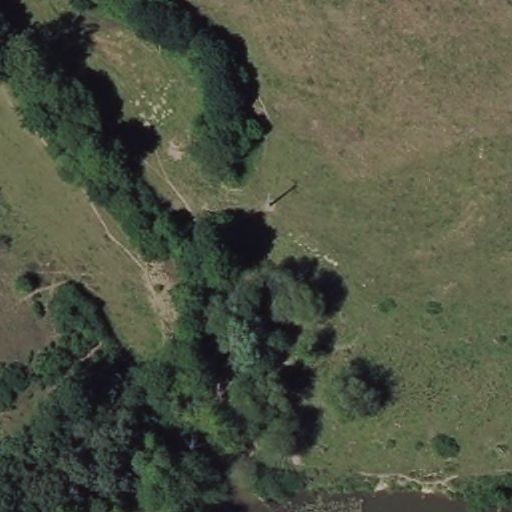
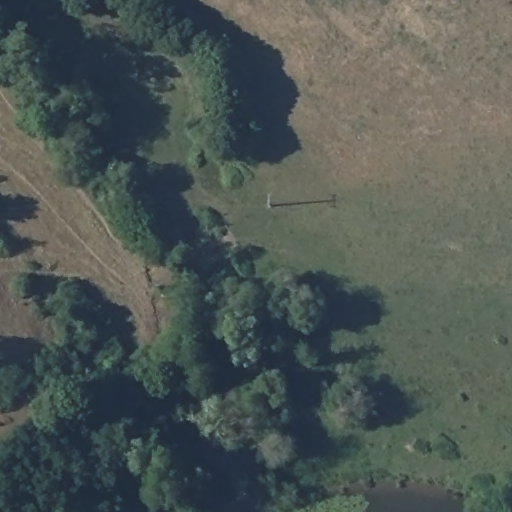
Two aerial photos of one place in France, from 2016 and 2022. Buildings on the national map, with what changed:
[]

